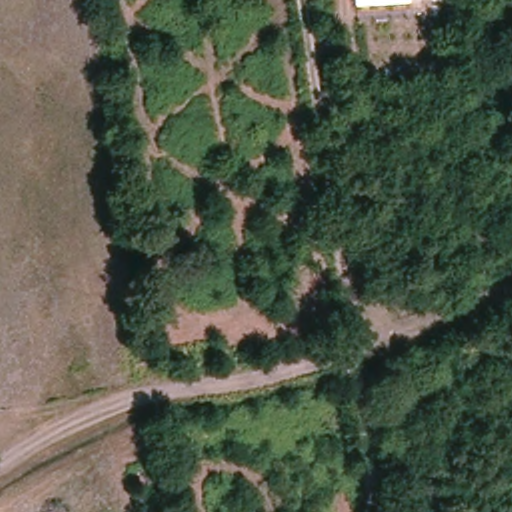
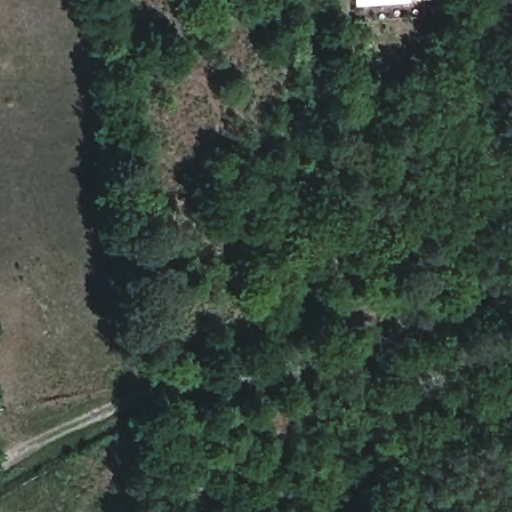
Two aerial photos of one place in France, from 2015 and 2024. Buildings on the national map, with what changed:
unchanged [(407,2),(355,5),(354,0),(406,0),(407,2)]

